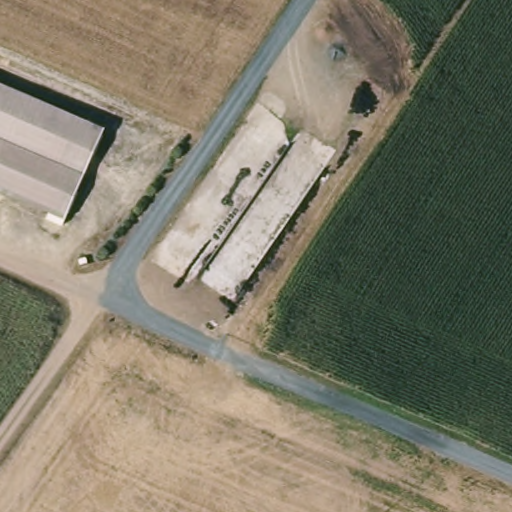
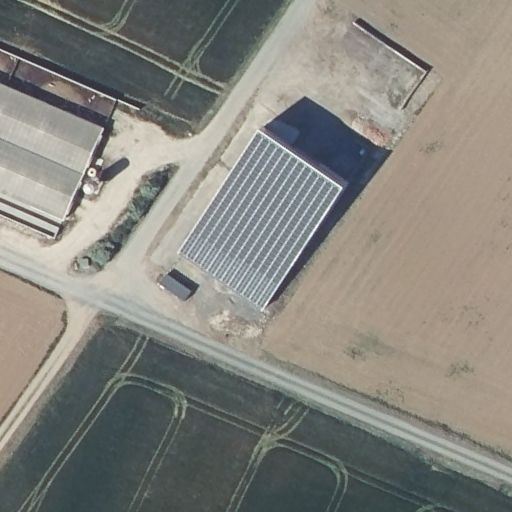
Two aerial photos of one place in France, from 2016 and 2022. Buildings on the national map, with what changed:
unchanged [(0,189),(0,81),(104,125),(66,218),(0,189)]
new [(265,126),(350,181),(264,309),(181,251),(265,126)]

